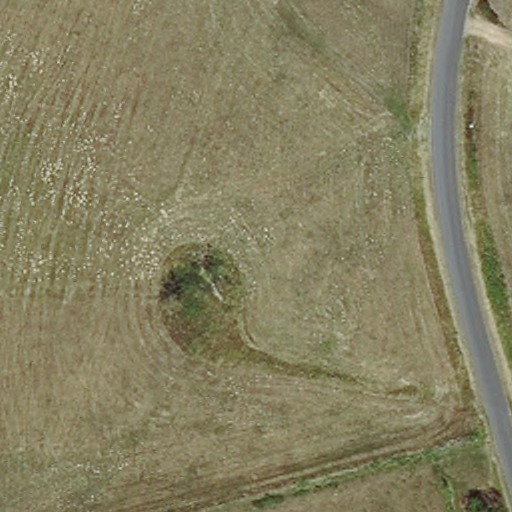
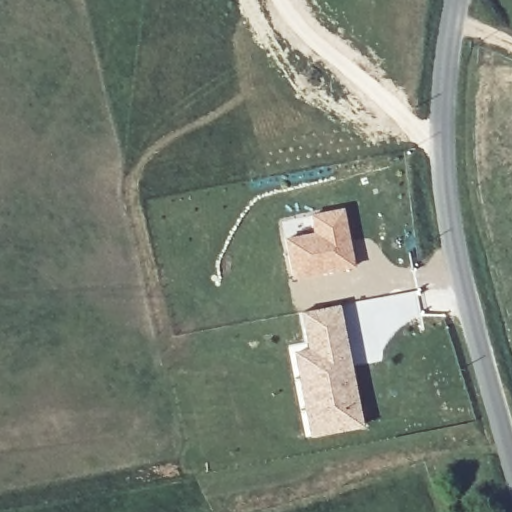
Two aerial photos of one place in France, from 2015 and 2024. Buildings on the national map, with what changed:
new [(355,264),(293,276),(286,238),(315,232),(312,214),(344,208),(355,264)]
new [(310,349),(307,335),(303,311),(338,303),(342,327),(345,342),(310,349)]
new [(296,352),(345,342),(361,424),(312,433),(308,412),(299,372),(296,352)]

